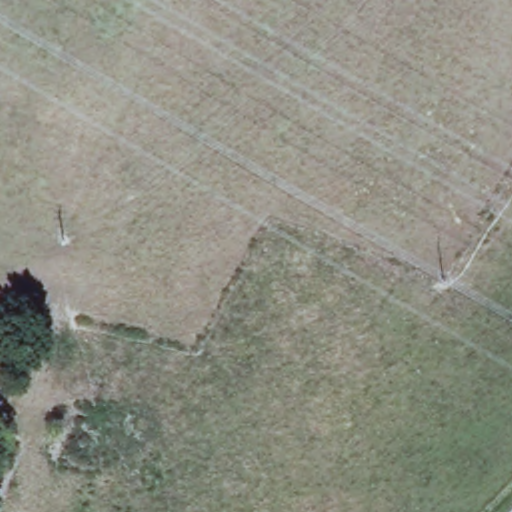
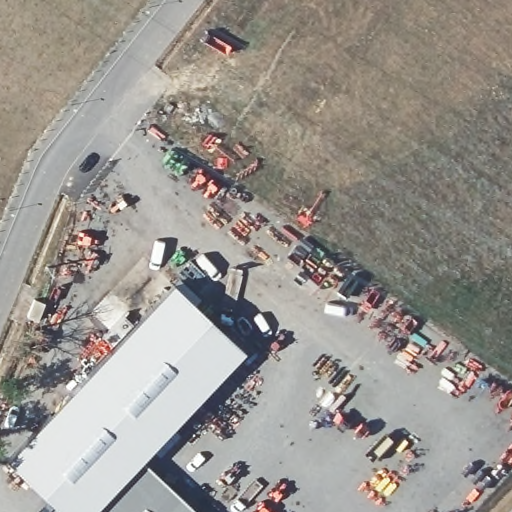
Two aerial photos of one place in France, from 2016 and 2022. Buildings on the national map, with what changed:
new [(246,356),(143,470),(190,512),(56,512),(12,471),(174,291),(246,356)]
new [(35,300),(45,304),(39,321),(29,317),(35,300)]

